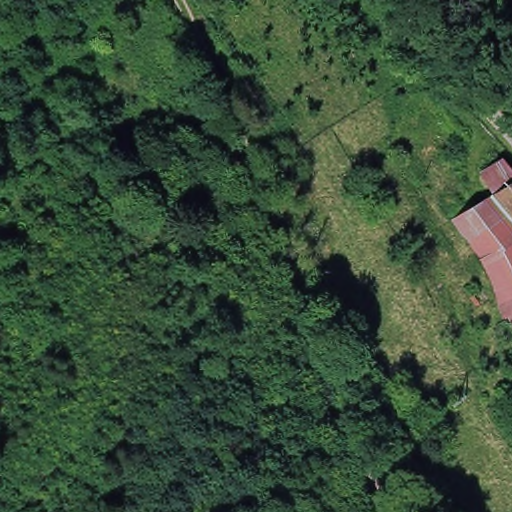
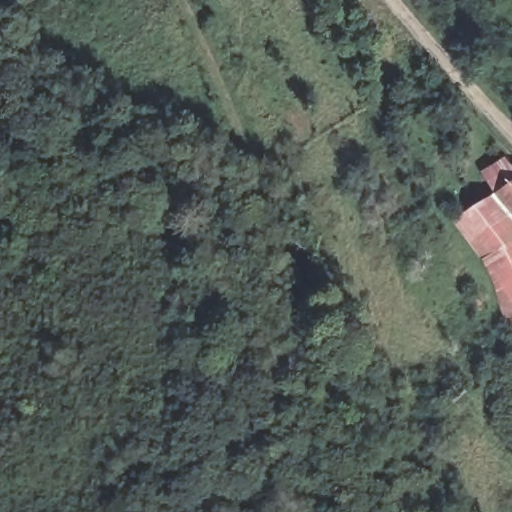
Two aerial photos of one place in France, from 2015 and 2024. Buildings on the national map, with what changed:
unchanged [(487,202),(473,178),(512,162),(512,329),(499,306),(477,318),(465,292),(489,275),(457,217),(487,202)]

